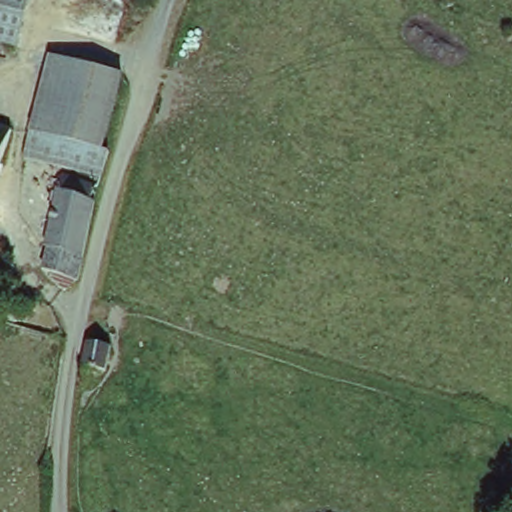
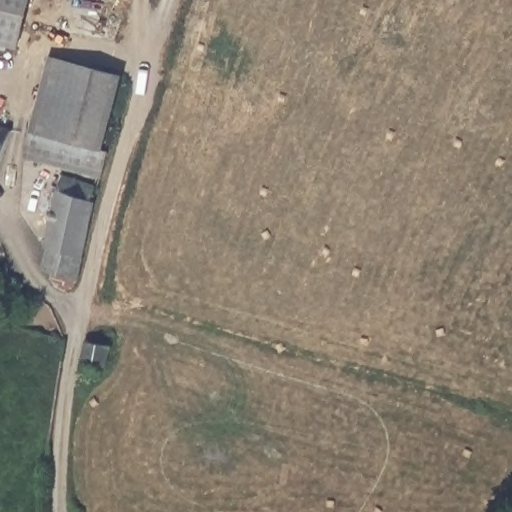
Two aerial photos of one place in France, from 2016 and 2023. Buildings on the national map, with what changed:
unchanged [(0,41),(0,0),(27,0),(17,44),(0,41)]
unchanged [(103,146),(109,147),(100,177),(21,157),(49,52),(122,71),(103,146)]
unchanged [(0,124),(6,125),(0,143),(0,124)]
unchanged [(65,281),(55,280),(50,275),(52,268),(42,266),(46,243),(42,242),(55,172),(94,180),(91,197),(97,198),(81,269),(75,274),(65,281)]
unchanged [(84,370),(86,359),(80,358),(85,333),(96,335),(111,339),(105,364),(100,363),(99,373),(91,372),(84,370)]

